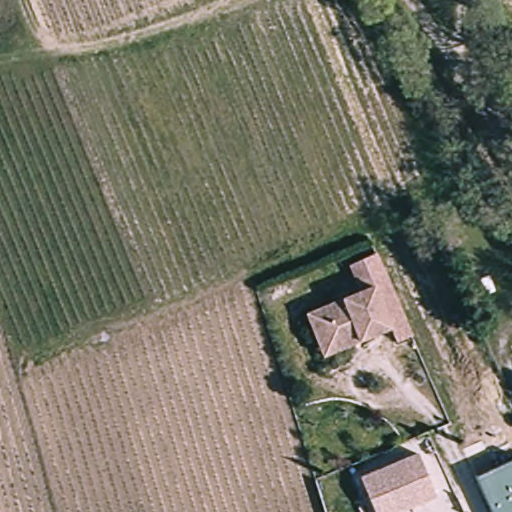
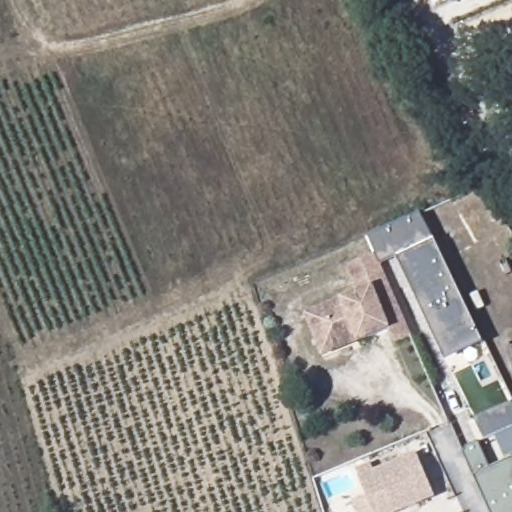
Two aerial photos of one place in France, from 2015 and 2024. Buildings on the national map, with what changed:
new [(397,256),(382,264),(376,250),(367,236),(419,211),(434,240),(484,344),(447,361),(397,256)]
unchanged [(315,345),(301,312),(362,288),(350,260),(376,250),(413,331),(395,339),(389,325),(355,340),(320,354),(315,345)]
new [(484,440),(473,418),(512,402),(512,427),(484,440)]
unchanged [(362,475),(420,451),(438,494),(396,512),(377,512),(362,475)]
unchanged [(512,460),(512,512),(493,512),(478,475),(512,460)]

